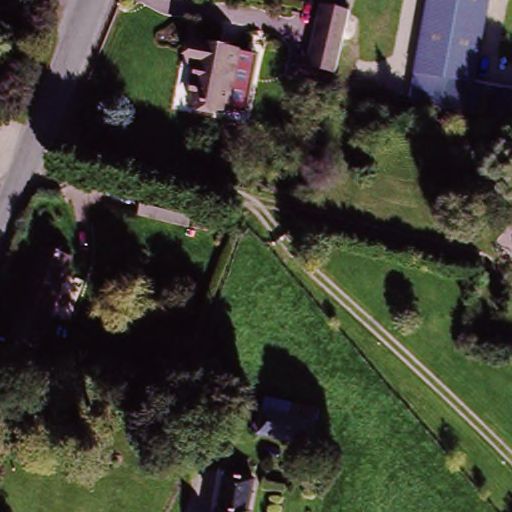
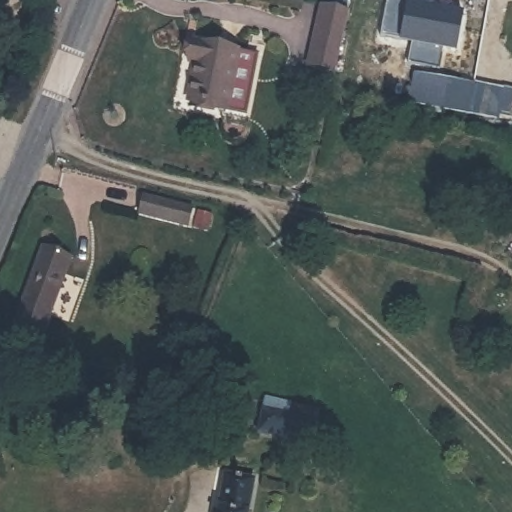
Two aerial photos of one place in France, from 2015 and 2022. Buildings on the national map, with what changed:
unchanged [(466,120),(404,108),(424,0),(489,0),(466,120)]
unchanged [(332,74),(306,69),(312,41),(320,8),(347,13),(332,74)]
unchanged [(182,95),(189,57),(182,56),(186,35),(229,42),(220,101),(182,95)]
unchanged [(220,101),(229,42),(249,45),(239,105),(220,101)]
unchanged [(39,248),(64,258),(32,340),(7,331),(39,248)]
unchanged [(259,437),(265,407),(267,398),(267,396),(322,406),(321,409),(319,419),(313,448),(259,437)]
unchanged [(251,477),(245,512),(217,512),(224,473),(251,477)]

